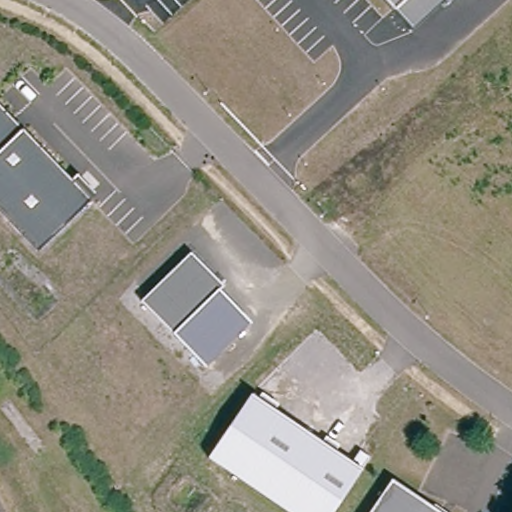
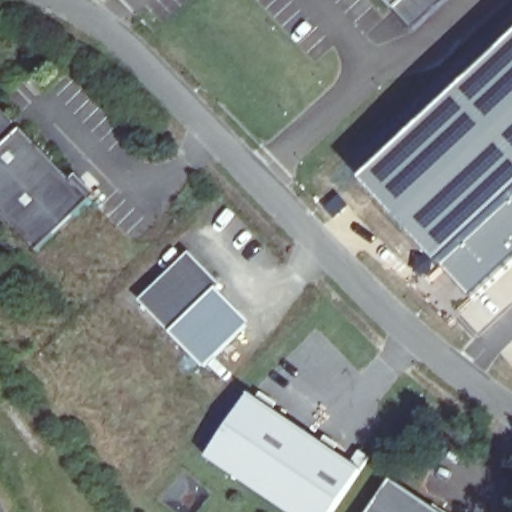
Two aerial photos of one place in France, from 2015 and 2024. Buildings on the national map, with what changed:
unchanged [(410,28),(395,9),(387,0),(443,0),(410,28)]
new [(512,201),(486,227),(441,265),(363,181),(512,44),(512,201)]
unchanged [(40,250),(0,209),(0,101),(15,117),(24,126),(94,197),(40,250)]
new [(512,201),(512,260),(471,297),(441,265),(486,227),(512,201)]
unchanged [(206,369),(142,303),(192,254),(224,288),(217,295),(249,327),(206,369)]
unchanged [(334,512),(288,512),(207,459),(251,395),(362,469),(334,512)]
unchanged [(435,509),(438,505),(449,512),(373,512),(394,481),(435,509)]

